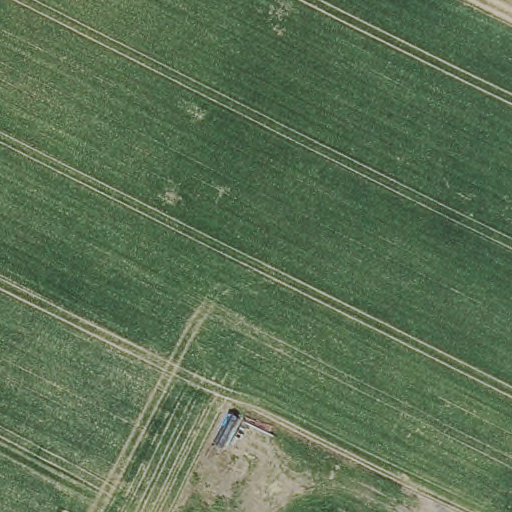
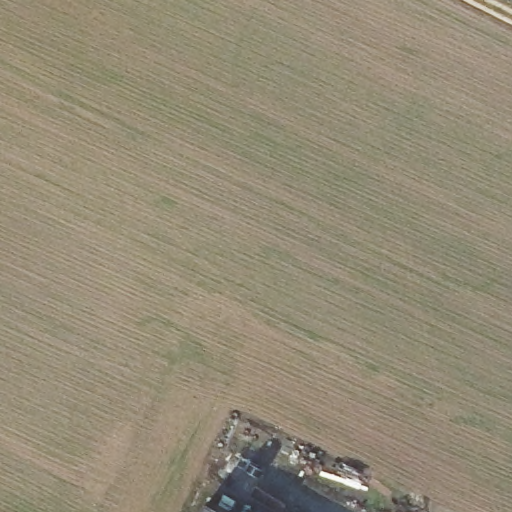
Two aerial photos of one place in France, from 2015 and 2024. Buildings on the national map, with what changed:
unchanged [(208,497),(237,512),(202,512),(208,497)]

